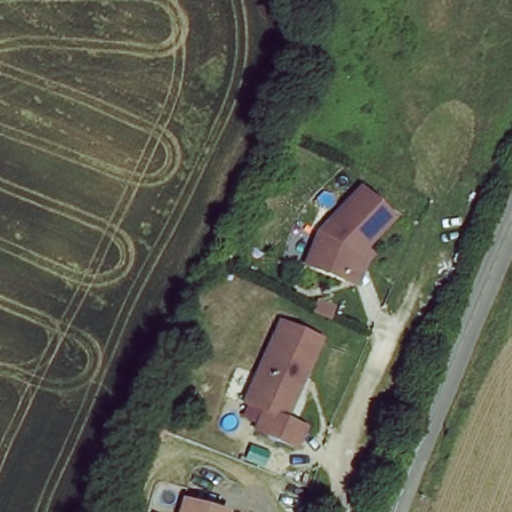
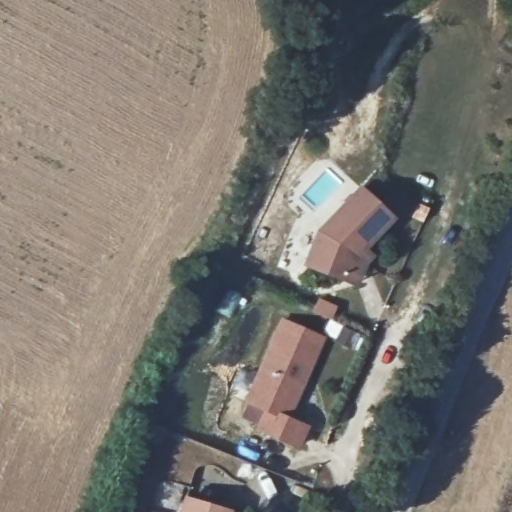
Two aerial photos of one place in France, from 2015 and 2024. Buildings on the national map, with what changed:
unchanged [(398,220),(371,247),(379,257),(369,266),(362,287),(304,265),(321,225),(366,186),(398,220)]
unchanged [(289,417),(314,425),(305,450),(256,433),(264,411),(247,402),(284,317),(326,334),(289,417)]
unchanged [(234,508),(233,512),(182,512),(188,495),(234,508)]

